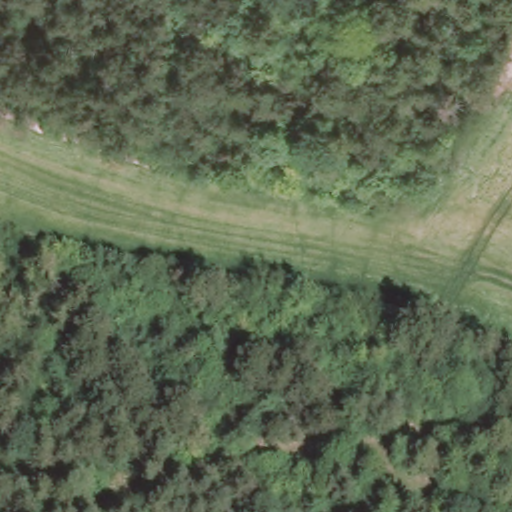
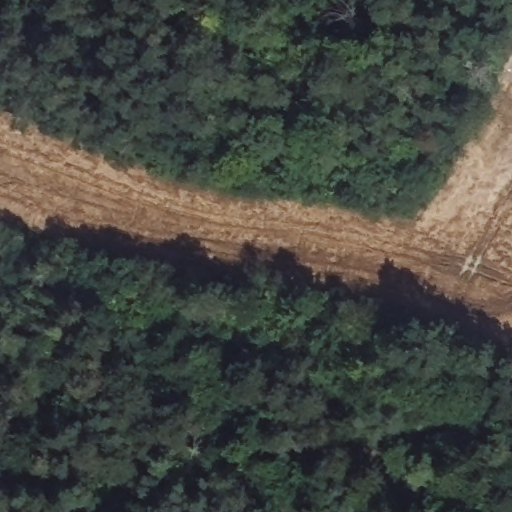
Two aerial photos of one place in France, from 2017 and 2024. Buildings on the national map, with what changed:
unchanged [(507,512),(500,512),(481,505),(487,485),(512,494),(512,503),(507,512)]

